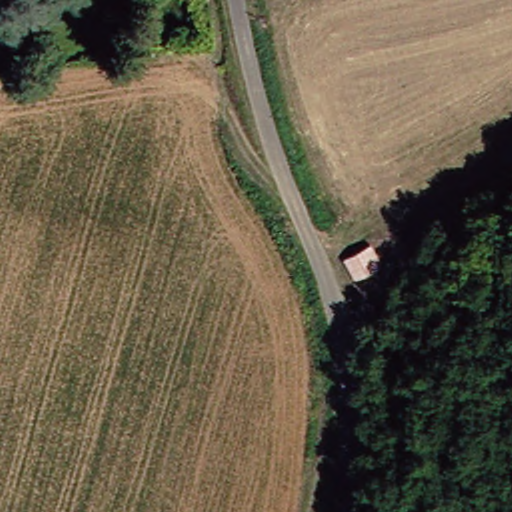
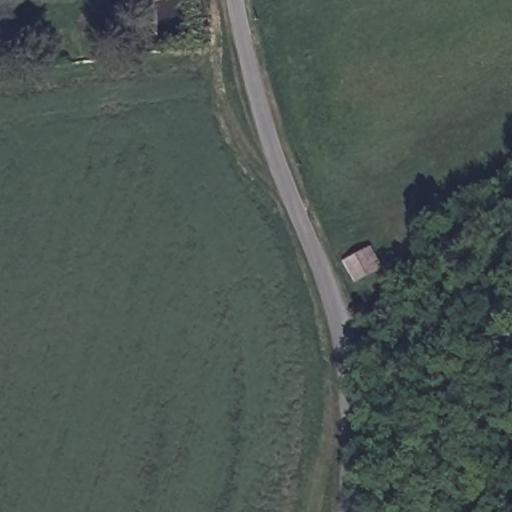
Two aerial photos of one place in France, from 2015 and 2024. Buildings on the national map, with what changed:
unchanged [(373,249),(380,270),(364,281),(355,257),(373,249)]

